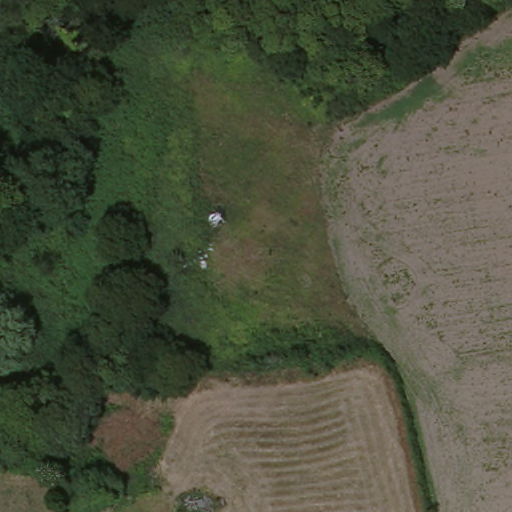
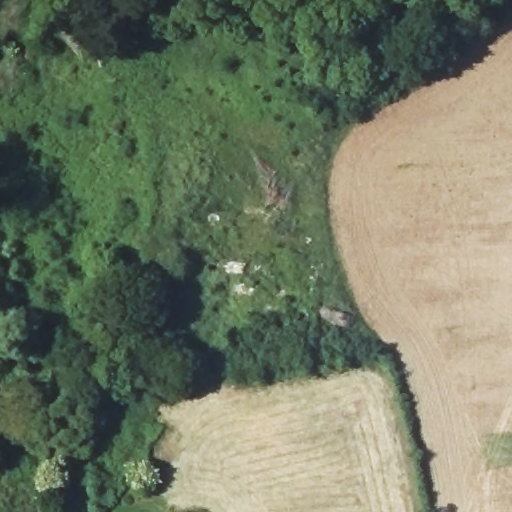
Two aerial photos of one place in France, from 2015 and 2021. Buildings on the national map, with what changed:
[]

